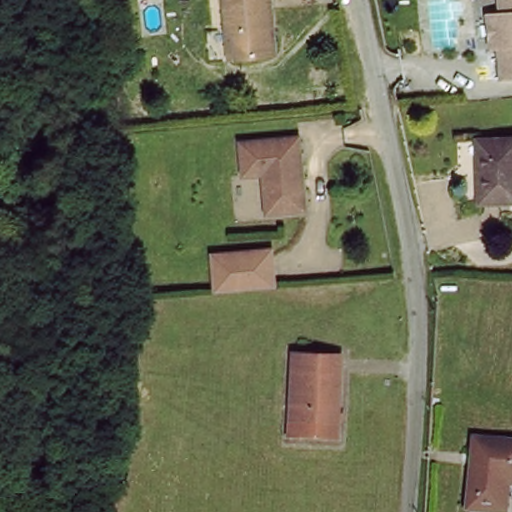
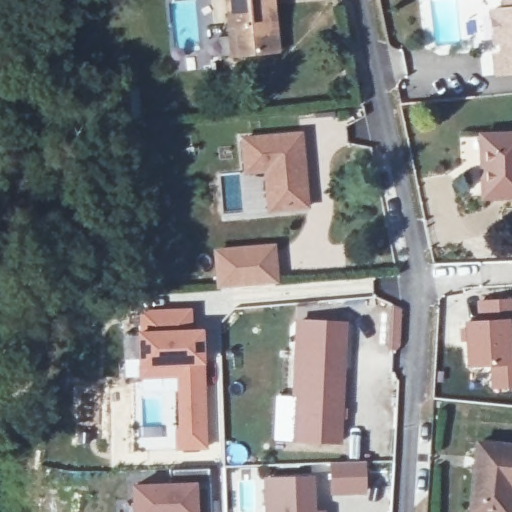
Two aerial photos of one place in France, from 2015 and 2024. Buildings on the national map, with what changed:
unchanged [(231,24),(229,0),(274,0),(278,47),(241,51),(234,52),(231,24)]
unchanged [(497,47),(493,14),(506,12),(504,0),(512,0),(512,76),(508,77),(504,46),(497,47)]
unchanged [(304,201),(266,205),(263,165),(243,167),(240,135),(297,130),(304,201)]
unchanged [(480,137),(512,135),(512,200),(483,201),(480,137)]
unchanged [(220,252),(277,247),(280,284),(275,285),(223,289),(220,252)]
new [(489,367),(465,367),(460,321),(477,319),(475,300),(512,297),(512,314),(510,314),(510,317),(512,349),(512,389),(491,391),(489,367)]
new [(175,452),(176,379),(138,380),(138,367),(138,331),(139,310),(193,309),(193,329),(204,329),(205,367),(207,450),(175,452)]
unchanged [(299,397),(300,351),(345,352),(344,441),(308,440),(299,440),(299,397)]
unchanged [(512,447),(512,506),(511,512),(472,512),(480,445),(512,447)]
new [(365,461),(366,494),(331,496),(329,463),(365,461)]
new [(317,511),(326,511),(326,512),(264,512),(263,478),(316,476),(317,511)]
new [(197,483),(199,512),(132,512),(132,483),(197,483)]

